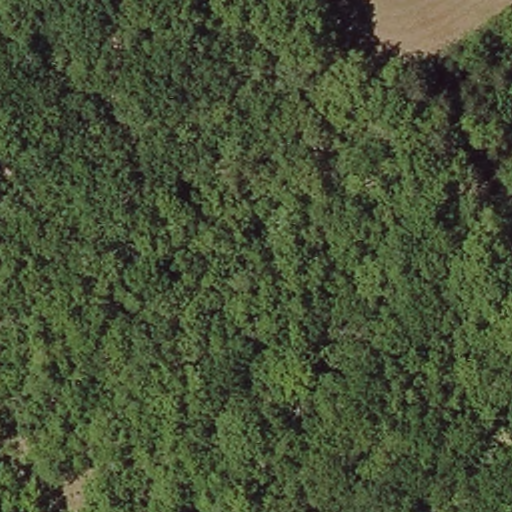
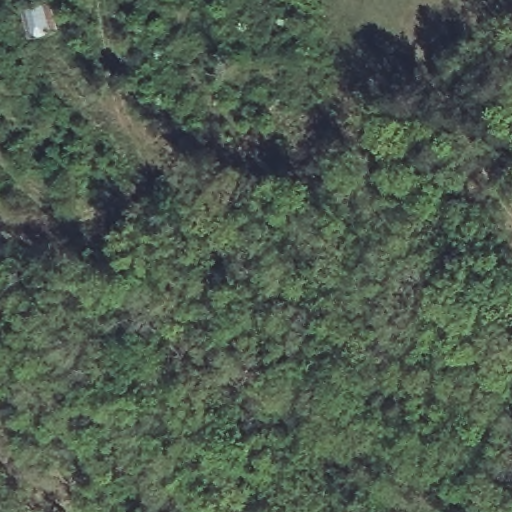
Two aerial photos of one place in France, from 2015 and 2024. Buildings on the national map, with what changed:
unchanged [(25,2),(40,0),(52,0),(57,29),(30,34),(25,2)]

